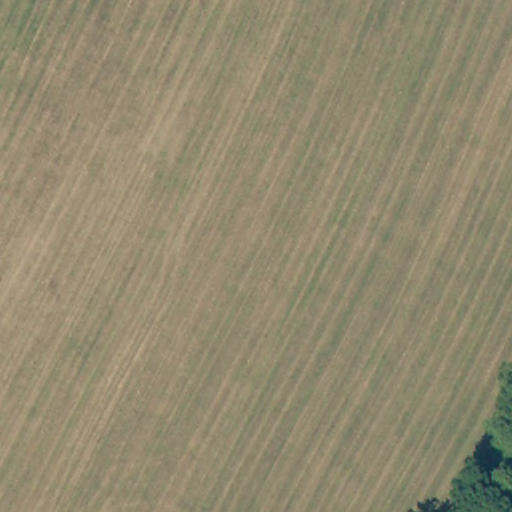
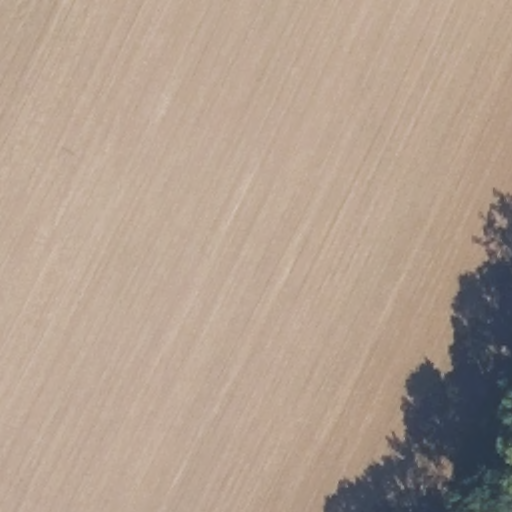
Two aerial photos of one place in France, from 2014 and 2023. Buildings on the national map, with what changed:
[]

